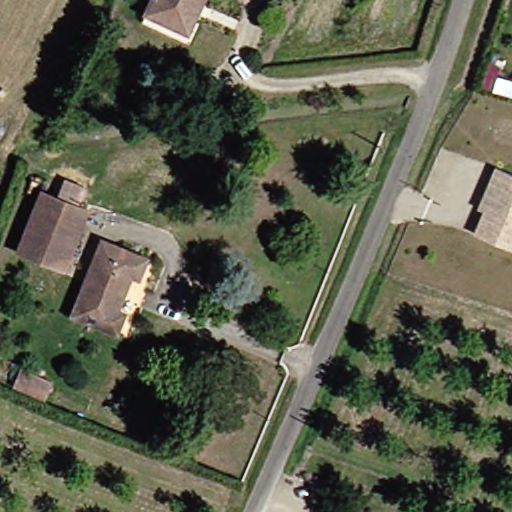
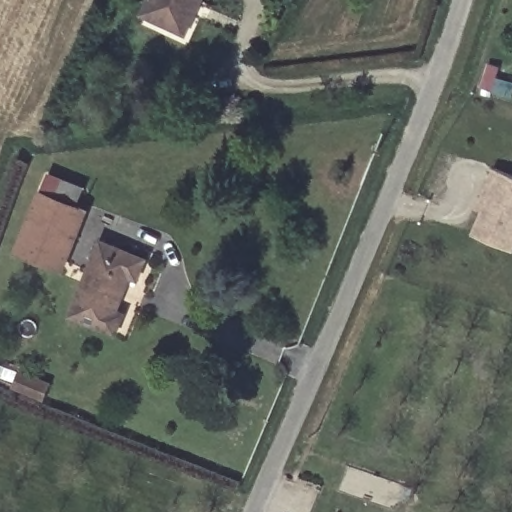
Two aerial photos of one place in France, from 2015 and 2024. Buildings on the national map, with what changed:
unchanged [(185,0),(174,26),(140,11),(144,0),(185,0)]
unchanged [(187,0),(195,0),(194,3),(187,0)]
unchanged [(512,173),(512,246),(512,247),(471,231),(481,208),(475,206),(486,181),(492,165),(512,173)]
unchanged [(57,266),(6,248),(33,186),(83,203),(57,266)]
unchanged [(111,326),(66,307),(96,239),(139,257),(132,273),(126,270),(111,303),(119,307),(111,326)]
unchanged [(301,460),(308,444),(334,453),(328,469),(301,460)]
unchanged [(299,465),(328,475),(324,487),(294,476),(299,465)]

